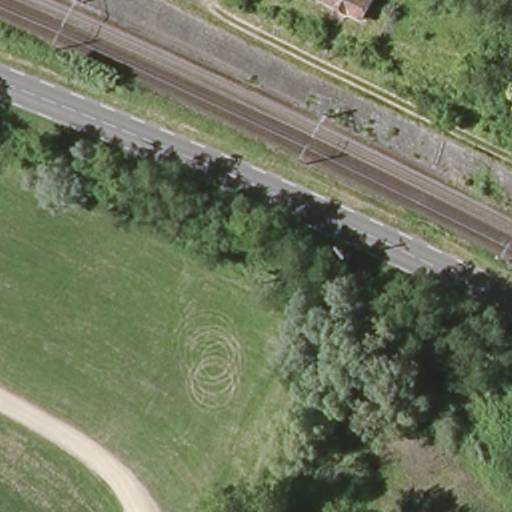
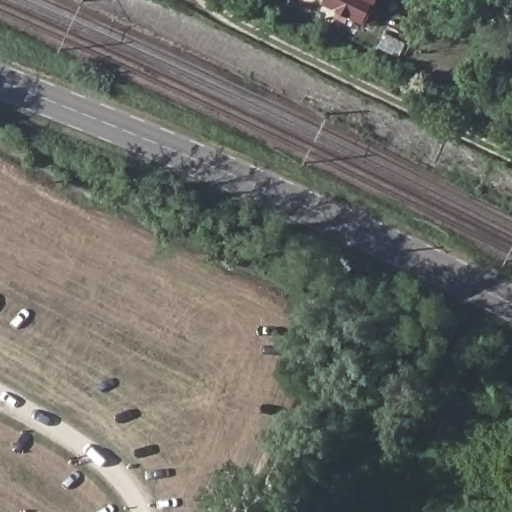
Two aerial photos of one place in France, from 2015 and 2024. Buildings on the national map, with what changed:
unchanged [(365,26),(321,6),(325,0),(379,0),(365,26)]

